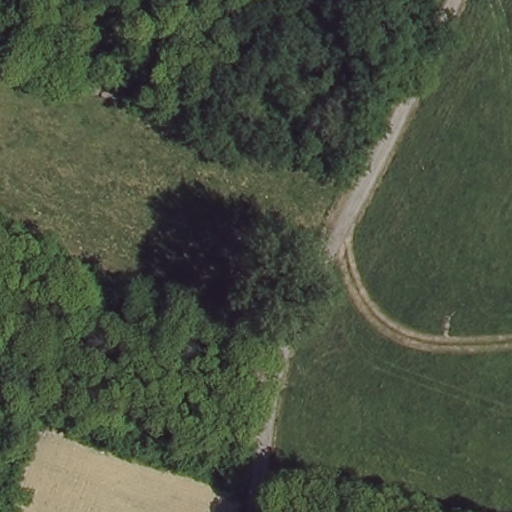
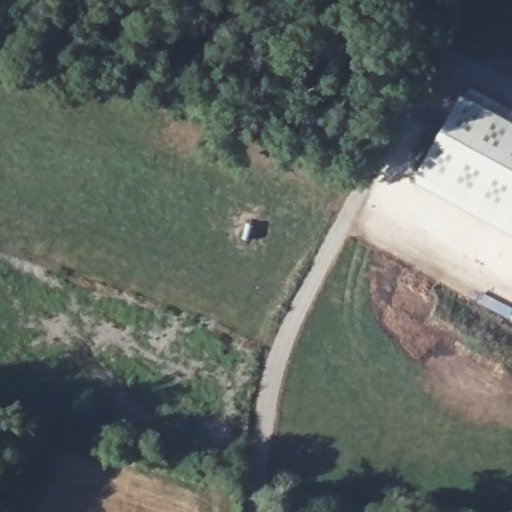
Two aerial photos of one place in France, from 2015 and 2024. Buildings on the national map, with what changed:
new [(411,183),(459,95),(512,124),(512,238),(411,183)]

